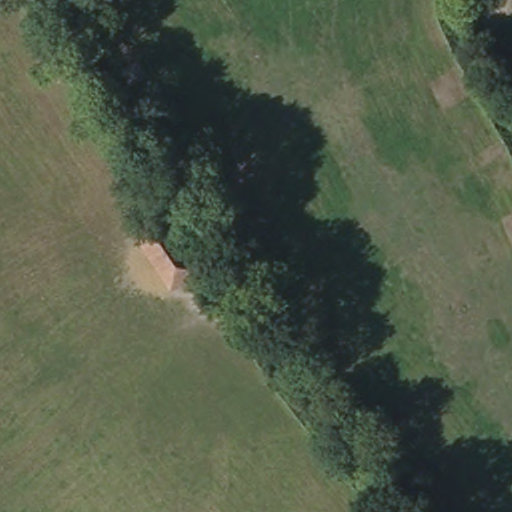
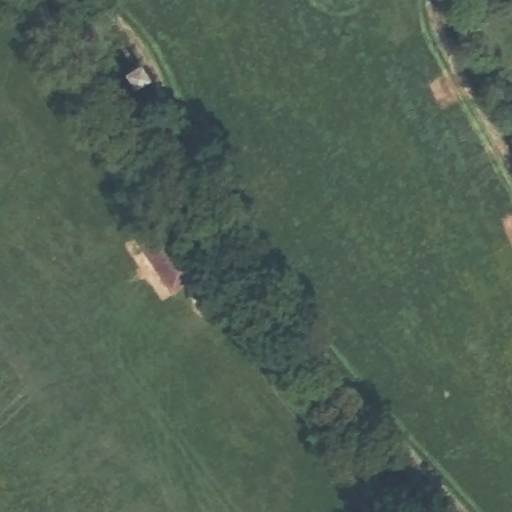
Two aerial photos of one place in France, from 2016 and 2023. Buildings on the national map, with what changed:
unchanged [(163,56),(174,71),(160,80),(149,65),(163,56)]
unchanged [(184,221),(217,272),(193,289),(160,237),(184,221)]

